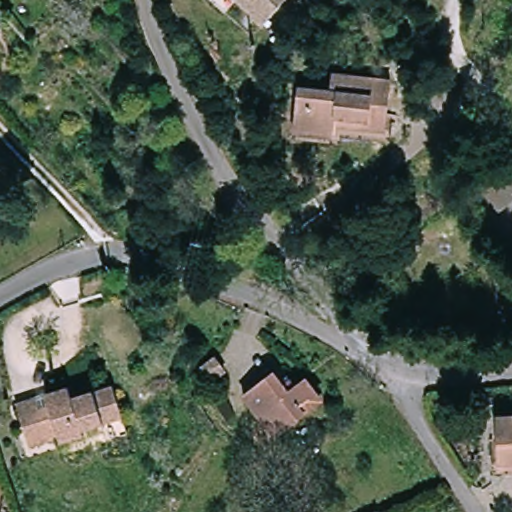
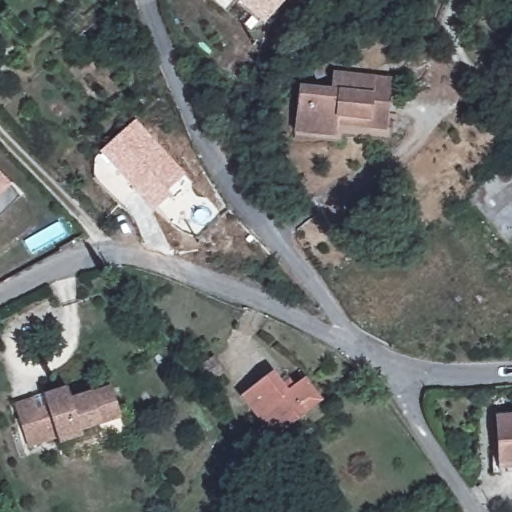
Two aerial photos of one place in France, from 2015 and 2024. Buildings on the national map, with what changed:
unchanged [(267,24),(238,0),(288,0),(267,24)]
unchanged [(331,97),(334,83),(398,95),(391,144),(341,132),(336,149),(290,140),(299,92),(331,97)]
new [(136,119),(186,173),(167,191),(170,194),(152,210),(100,152),(136,119)]
unchanged [(512,182),(485,203),(467,183),(512,149),(512,182)]
new [(13,185),(10,188),(20,198),(0,217),(0,173),(13,185)]
unchanged [(217,344),(228,360),(211,370),(201,355),(217,344)]
unchanged [(279,371),(287,383),(295,377),(300,385),(314,376),(325,393),(300,407),(307,418),(272,436),(246,393),(279,371)]
unchanged [(15,405),(31,401),(34,408),(46,404),(43,394),(68,388),(71,397),(110,384),(120,417),(81,429),(85,439),(63,445),(60,437),(29,448),(22,428),(15,405)]
unchanged [(499,462),(494,417),(512,414),(512,476),(502,477),(499,462)]

